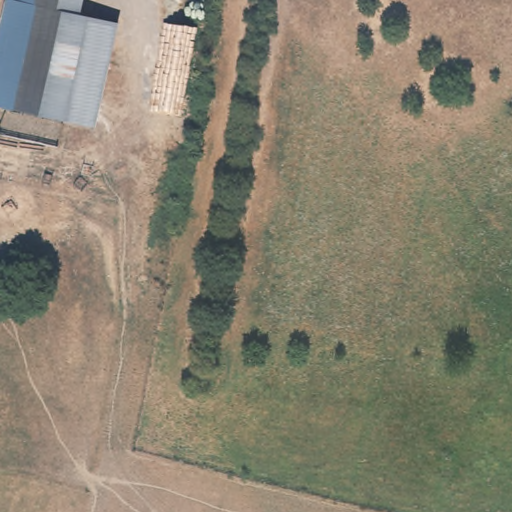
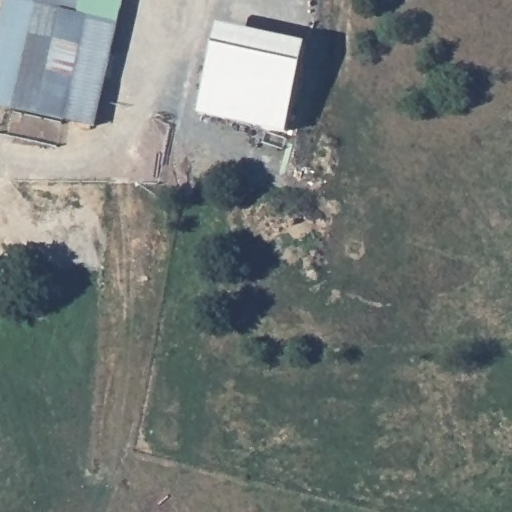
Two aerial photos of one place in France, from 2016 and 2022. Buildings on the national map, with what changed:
unchanged [(1,7),(2,0),(75,0),(71,20),(82,22),(59,130),(0,118),(0,12),(1,7)]
unchanged [(115,28),(95,136),(59,130),(82,22),(115,28)]
new [(218,22),(309,44),(286,133),(198,114),(218,22)]

